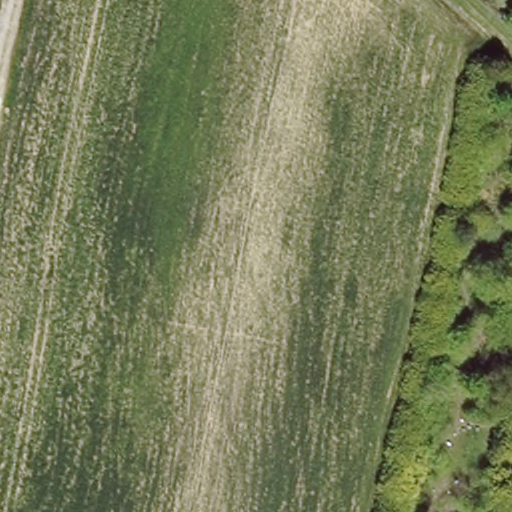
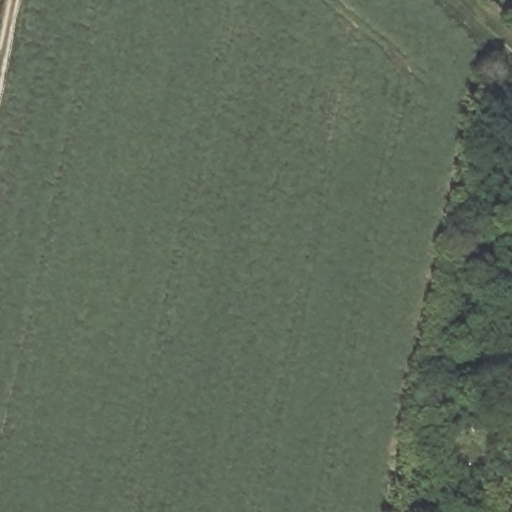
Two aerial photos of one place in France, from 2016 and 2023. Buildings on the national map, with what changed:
[]

